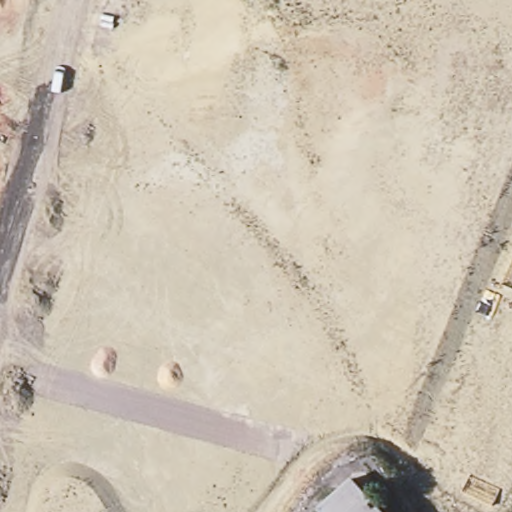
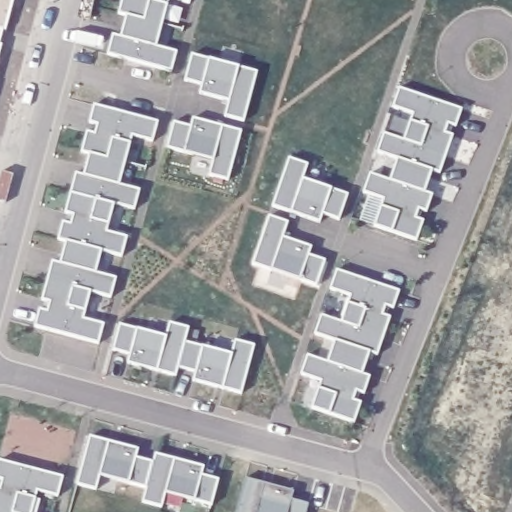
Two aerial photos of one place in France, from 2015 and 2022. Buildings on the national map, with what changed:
new [(2,30),(0,39),(0,0),(13,0),(6,30),(2,30)]
new [(177,51),(171,71),(105,55),(112,34),(120,36),(125,15),(117,14),(121,0),(169,0),(157,46),(177,51)]
new [(177,0),(191,0),(190,4),(177,0)]
demolished [(440,41),(487,45),(455,443),(450,443),(408,440),(412,398),(440,41)]
new [(0,56),(0,43),(3,45),(0,56)]
new [(243,121),(225,116),(227,101),(198,94),(201,85),(183,80),(191,54),(257,71),(243,121)]
demolished [(236,60),(276,64),(273,95),(269,95),(268,106),(232,103),(236,60)]
new [(456,127),(448,124),(445,133),(453,135),(440,174),(432,171),(425,192),(432,195),(427,212),(419,210),(417,219),(423,220),(417,241),(373,226),(382,199),(362,192),(369,173),(389,180),(396,159),(376,152),(383,132),(403,140),(412,113),(392,106),(398,88),(462,109),(456,127)]
new [(157,121),(152,142),(132,137),(120,185),(140,190),(135,210),(113,205),(107,231),(127,236),(122,256),(101,251),(97,273),(115,278),(110,298),(90,293),(84,320),(103,324),(98,344),(33,326),(38,308),(47,311),(48,302),(41,301),(52,260),(59,262),(65,241),(57,240),(62,221),(70,224),(72,215),(63,214),(75,172),(82,174),(88,154),(80,152),(86,130),(94,132),(95,125),(88,123),(92,105),(157,121)]
new [(242,130),(227,180),(208,175),(212,161),(165,149),(173,121),(190,126),(192,116),(242,130)]
new [(308,164),(303,177),(347,194),(339,220),(322,214),(320,223),(271,205),(288,158),(308,164)]
new [(287,222),(283,236),(312,245),(310,255),(325,260),(316,285),(251,264),(269,216),(287,222)]
new [(393,309),(386,306),(383,315),(390,317),(377,356),(370,354),(362,374),(370,376),(364,395),(357,392),(354,400),(362,402),(354,423),(311,408),(321,381),(300,374),(307,355),(327,361),(333,341),(313,335),(320,314),(341,320),(350,295),(328,288),(335,270),(400,291),(393,309)]
new [(255,345),(241,394),(192,381),(195,372),(178,368),(175,376),(127,363),(128,355),(112,350),(119,325),(165,336),(170,322),(189,327),(185,342),(230,354),(234,340),(255,345)]
new [(138,448),(137,457),(152,461),(154,453),(204,466),(202,475),(218,480),(212,506),(165,494),(162,508),(141,503),(145,488),(99,476),(95,490),(76,485),(88,435),(138,448)]
new [(0,480),(0,460),(62,477),(57,496),(37,492),(32,512),(0,512),(0,484),(1,480),(0,480)]
new [(293,490),(292,498),(310,503),(307,512),(237,512),(245,477),(293,490)]
demolished [(320,510),(353,480),(370,498),(381,512),(321,512),(320,510)]

